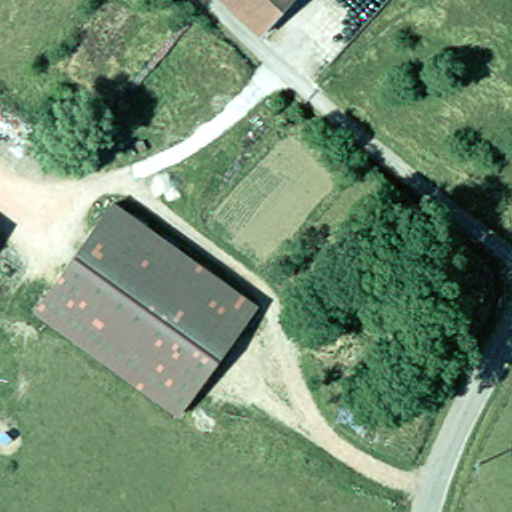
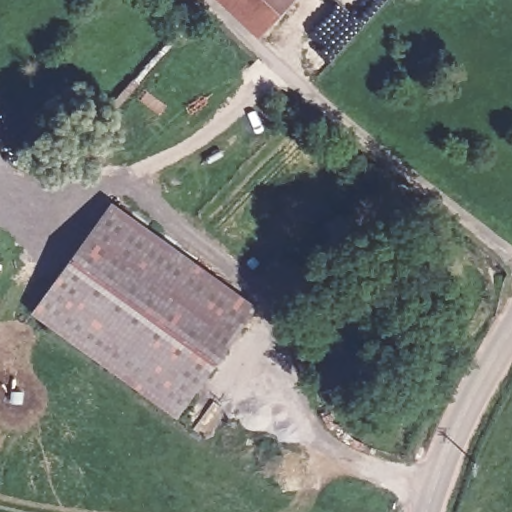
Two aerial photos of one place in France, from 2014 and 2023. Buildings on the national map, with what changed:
unchanged [(297,0),(258,39),(218,0),(297,0)]
unchanged [(177,415),(34,311),(114,201),(257,305),(177,415)]

